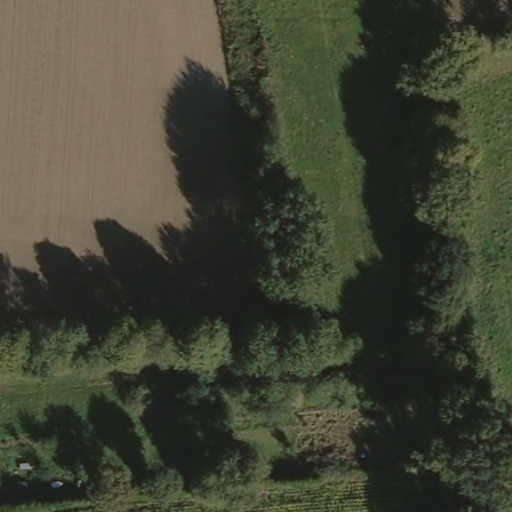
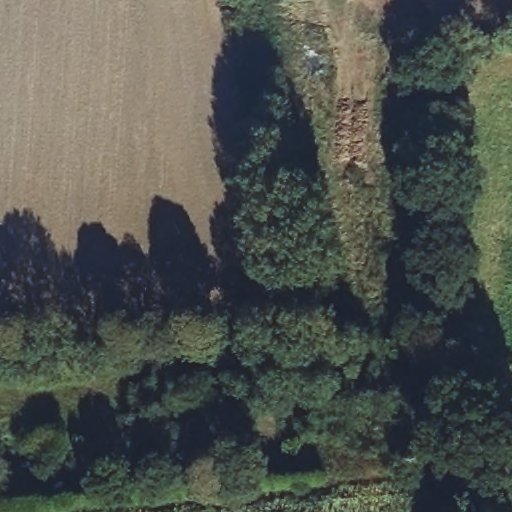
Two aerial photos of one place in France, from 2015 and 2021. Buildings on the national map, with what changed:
[]

